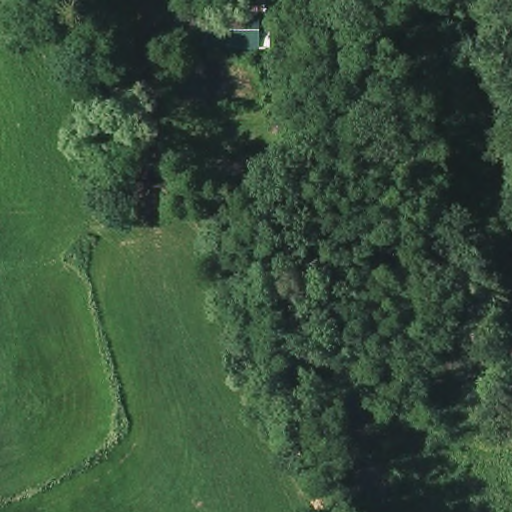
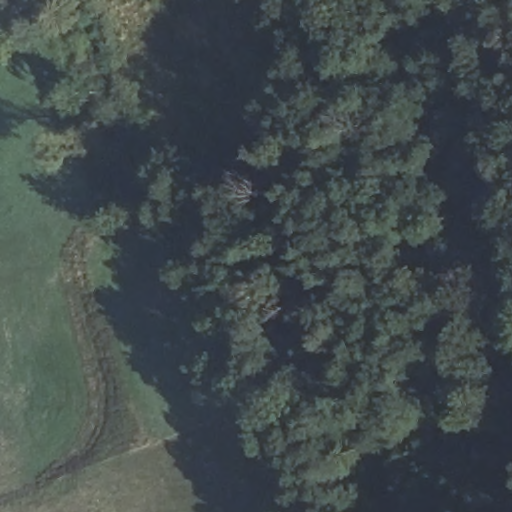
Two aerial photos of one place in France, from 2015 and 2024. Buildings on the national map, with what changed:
unchanged [(268,56),(209,54),(209,10),(269,11),(268,56)]

